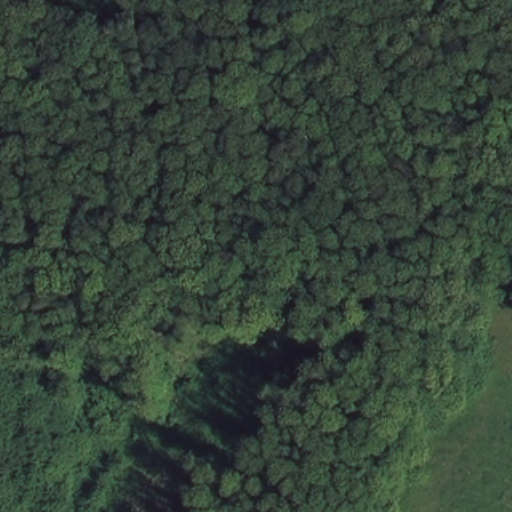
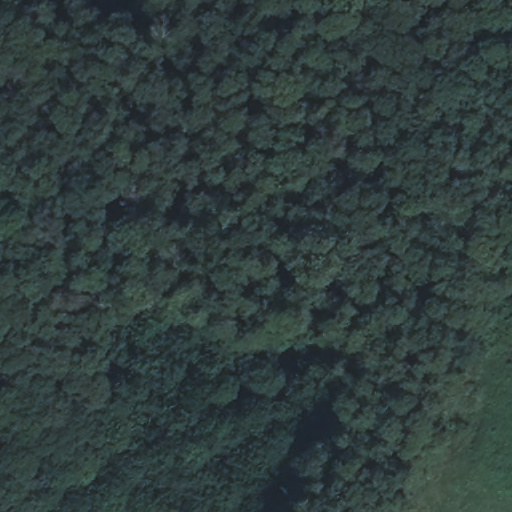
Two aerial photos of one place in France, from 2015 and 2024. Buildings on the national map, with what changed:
[]

